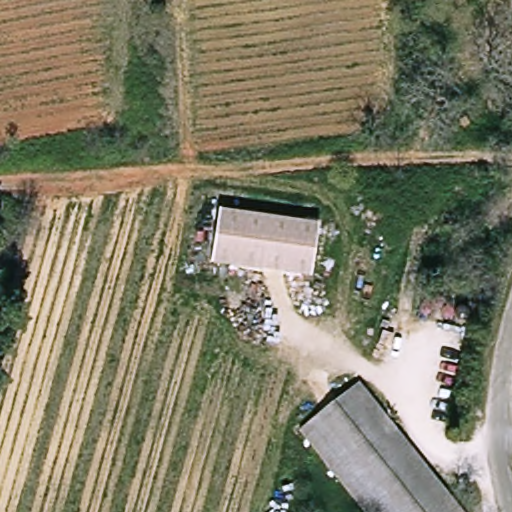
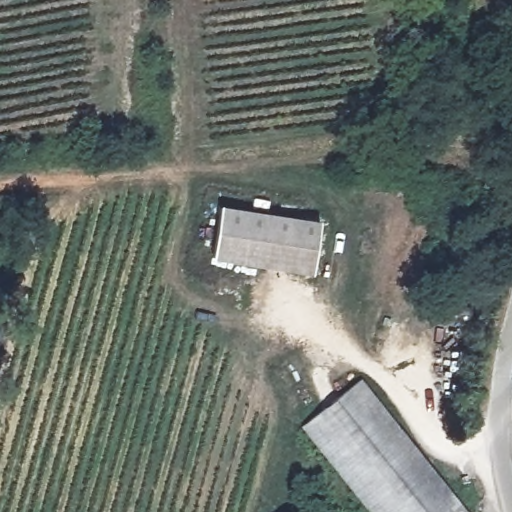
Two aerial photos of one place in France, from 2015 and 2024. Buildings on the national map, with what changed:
unchanged [(223,207),(322,225),(314,275),(214,257),(223,207)]
unchanged [(364,382),(467,512),(372,512),(306,429),(364,382)]

